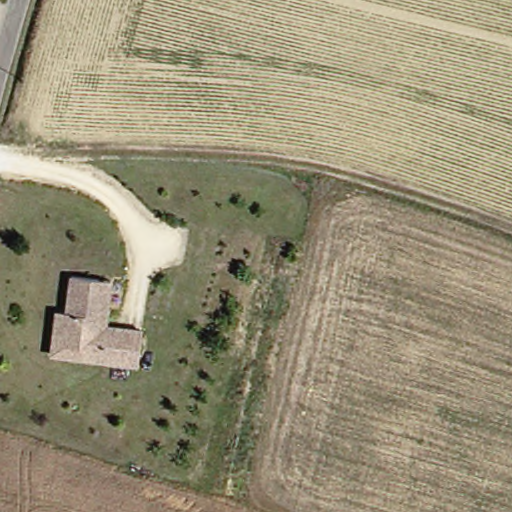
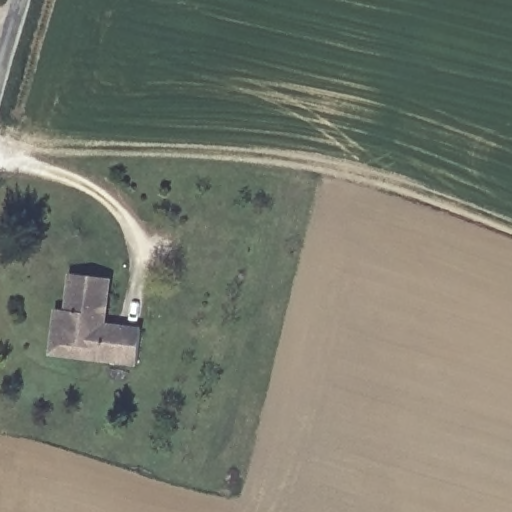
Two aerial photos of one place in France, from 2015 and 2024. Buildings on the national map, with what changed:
unchanged [(42,351),(51,307),(62,308),(68,273),(108,279),(100,326),(137,332),(131,366),(92,360),(53,352),(42,351)]

